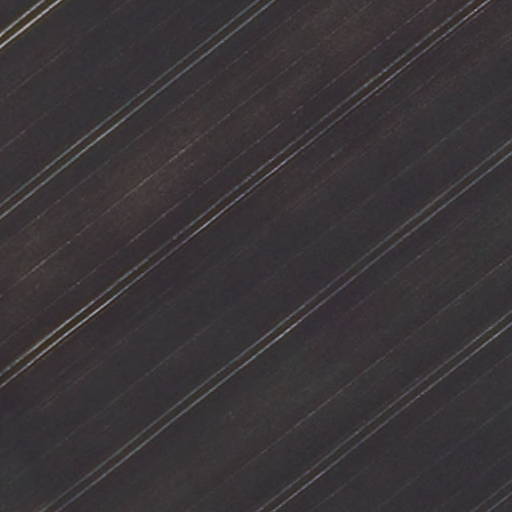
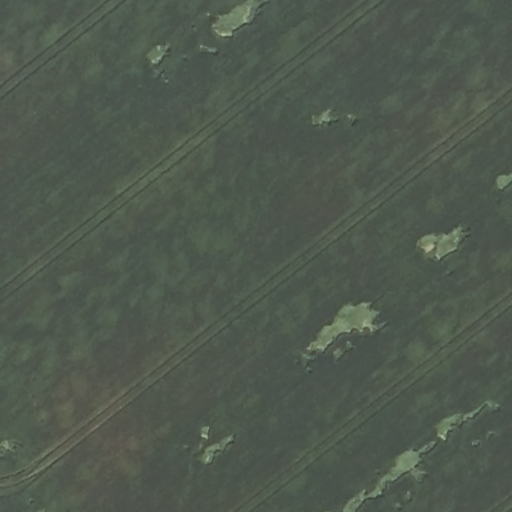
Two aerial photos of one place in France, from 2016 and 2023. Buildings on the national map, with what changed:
[]

